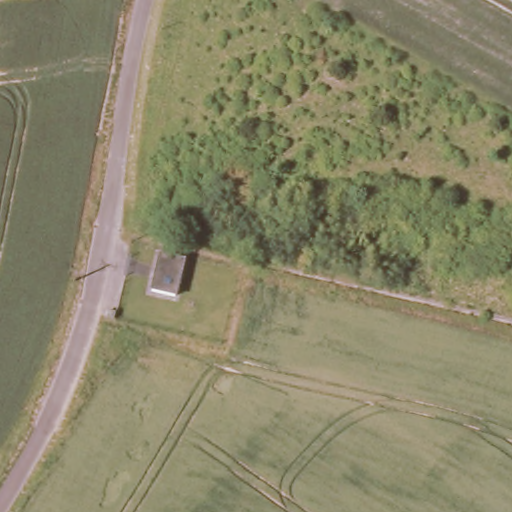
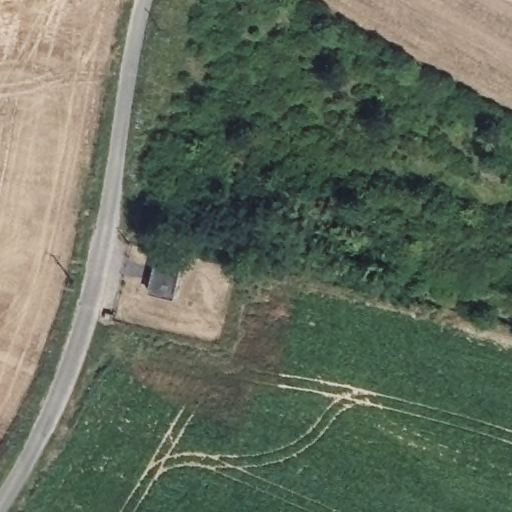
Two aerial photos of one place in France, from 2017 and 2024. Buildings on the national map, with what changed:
unchanged [(177,259),(171,294),(148,288),(154,254),(177,259)]

